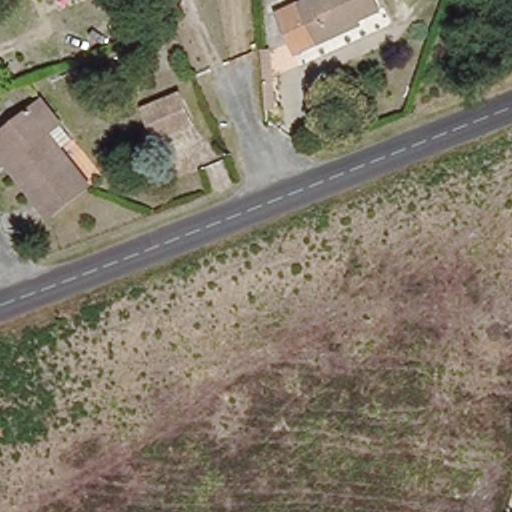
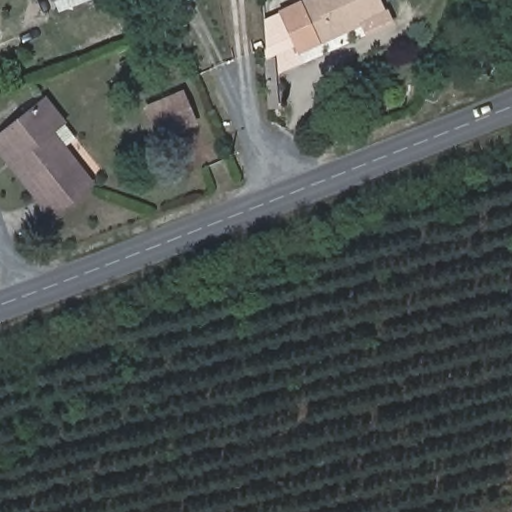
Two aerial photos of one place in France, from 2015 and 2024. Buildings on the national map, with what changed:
unchanged [(296,48),(280,9),(305,0),(381,0),(382,4),(361,12),(364,22),(331,35),(296,48)]
unchanged [(181,90),(196,126),(157,141),(143,104),(181,90)]
unchanged [(19,163),(9,149),(3,153),(0,148),(0,131),(46,95),(62,116),(47,129),(91,183),(49,212),(14,167),(19,163)]

